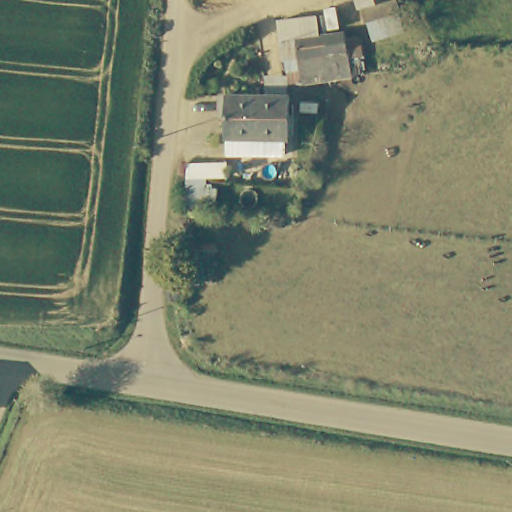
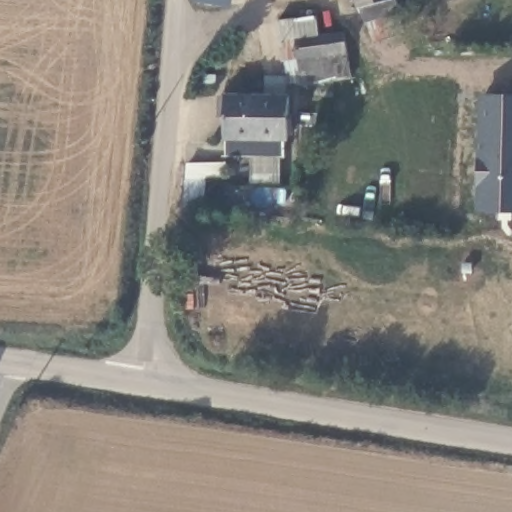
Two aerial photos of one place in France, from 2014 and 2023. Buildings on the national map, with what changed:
unchanged [(371,37),(365,16),(361,18),(355,0),(394,0),(396,7),(393,9),(400,28),(371,37)]
unchanged [(292,56),(288,56),(287,46),(295,45),(294,40),(348,34),(349,41),(351,54),(299,60),(292,60),(292,56)]
unchanged [(356,77),(302,85),(299,60),(351,54),(349,41),(363,39),(366,55),(352,59),(356,77)]
unchanged [(219,94),(283,92),(282,119),(282,154),(221,154),(219,94)]
new [(482,99),(512,99),(512,209),(480,208),(482,99)]

